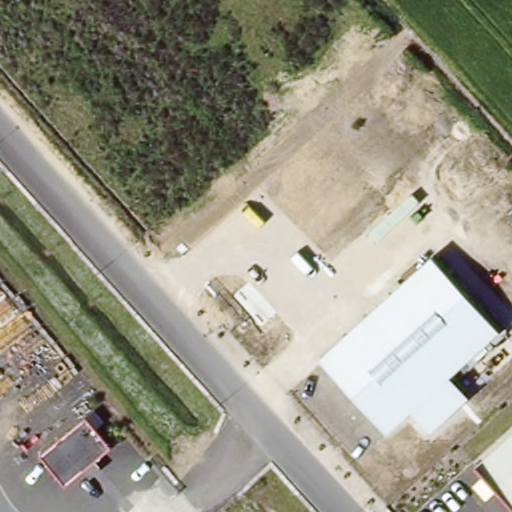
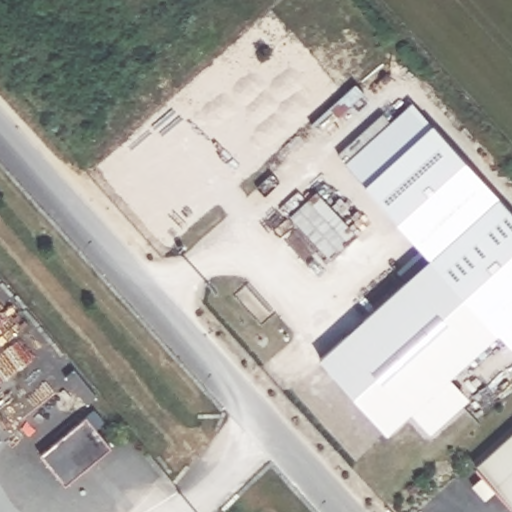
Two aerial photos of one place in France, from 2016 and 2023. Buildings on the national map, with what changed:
new [(430,257),(365,184),(345,162),(414,102),(433,122),(512,210),(512,345),(500,332),(430,257)]
unchanged [(430,257),(500,332),(452,377),(472,397),(430,432),(412,412),(387,433),(320,357),(430,257)]
unchanged [(95,409),(106,422),(97,427),(112,447),(65,486),(40,456),(95,409)]
unchanged [(475,465),(512,432),(512,506),(475,465)]

